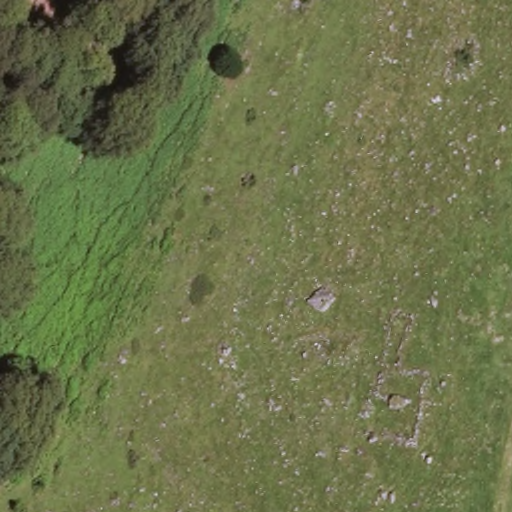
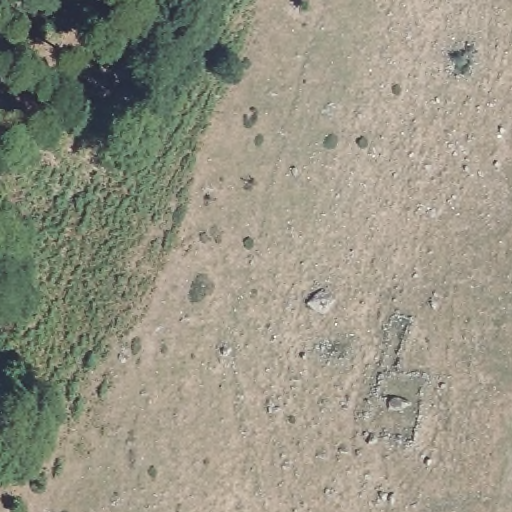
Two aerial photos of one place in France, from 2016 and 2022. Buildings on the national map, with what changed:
unchanged [(317,275),(331,286),(318,300),(302,289),(317,275)]

